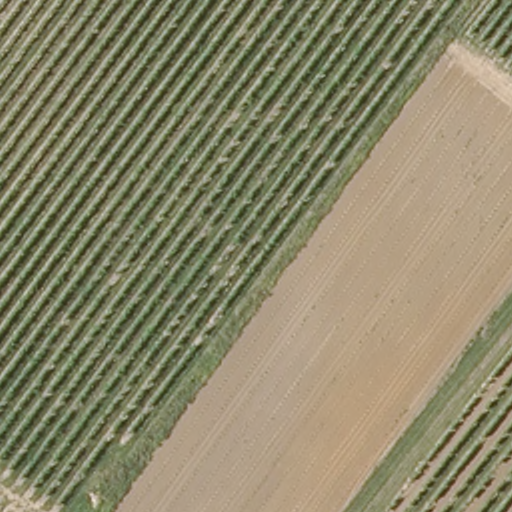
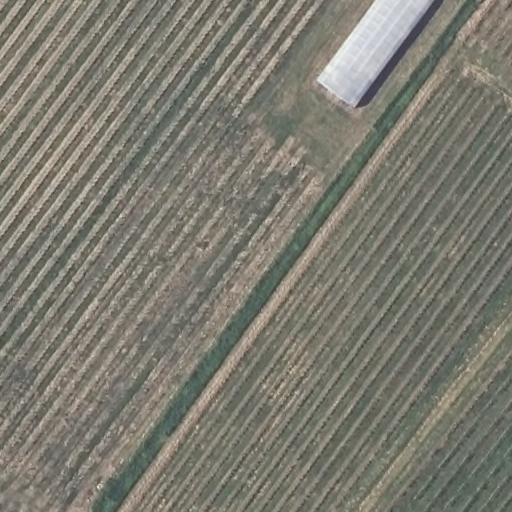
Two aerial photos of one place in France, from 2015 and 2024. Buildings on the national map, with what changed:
new [(351,103),(319,81),(379,0),(427,0),(351,103)]

